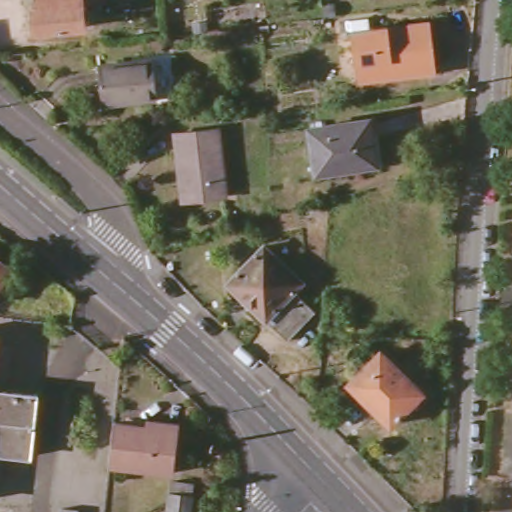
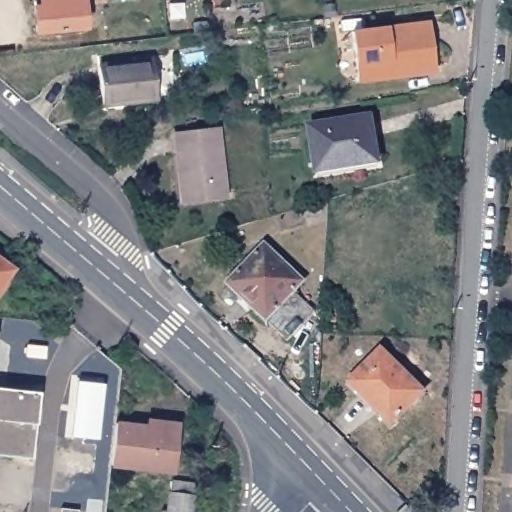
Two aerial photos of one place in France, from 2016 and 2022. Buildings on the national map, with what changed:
unchanged [(32,27),(30,2),(36,1),(36,0),(80,0),(81,21),(32,27)]
unchanged [(438,63),(396,69),(397,76),(362,81),(355,31),(432,21),(438,63)]
unchanged [(160,98),(105,104),(102,66),(156,61),(160,98)]
unchanged [(379,164),(319,174),(312,129),(371,119),(379,164)]
unchanged [(225,196),(183,200),(177,134),(219,129),(225,196)]
unchanged [(302,283),(294,292),(315,312),(287,341),(227,284),(264,246),(302,283)]
unchanged [(0,282),(0,262),(10,269),(0,282)]
unchanged [(422,393),(391,425),(349,384),(381,352),(422,393)]
unchanged [(30,457),(0,453),(0,388),(37,393),(30,457)]
unchanged [(177,427),(172,469),(110,461),(115,419),(177,427)]
unchanged [(194,484),(190,512),(166,512),(169,481),(194,484)]

